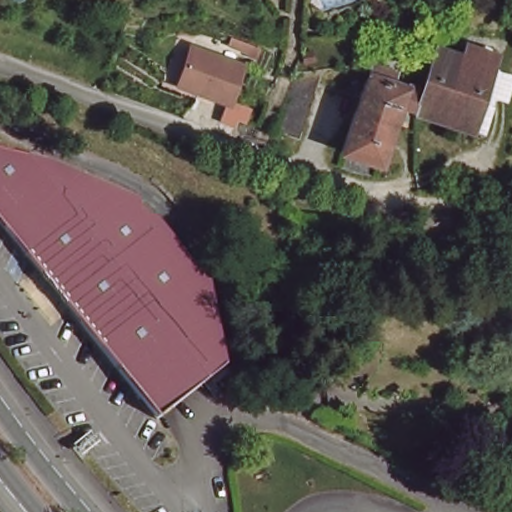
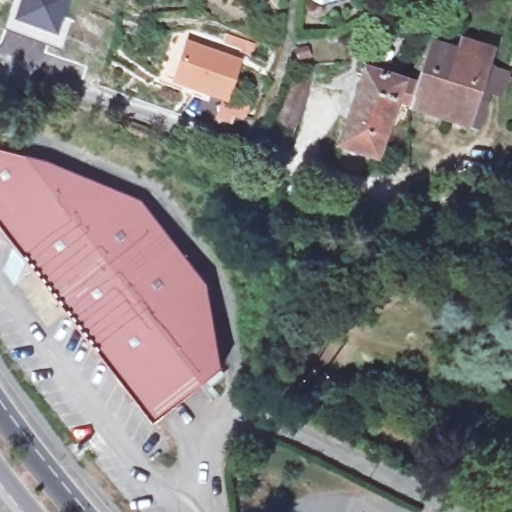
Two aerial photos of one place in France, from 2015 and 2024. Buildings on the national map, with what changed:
new [(63,0),(50,35),(36,30),(33,39),(5,28),(15,0),(63,0)]
unchanged [(189,43),(240,59),(228,98),(176,81),(189,43)]
unchanged [(415,93),(430,47),(468,59),(472,47),(492,54),(485,74),(507,82),(504,95),(490,92),(486,106),(476,135),(410,114),(417,94),(415,93)]
unchanged [(287,70),(312,61),(319,65),(295,132),(269,124),(287,70)]
unchanged [(391,107),(370,164),(334,150),(360,79),(365,65),(387,72),(385,83),(402,90),(415,93),(417,94),(410,114),(407,113),(391,107)]
unchanged [(27,285),(40,277),(0,223),(0,150),(54,166),(145,210),(209,296),(220,380),(149,432),(65,315),(52,323),(27,285)]

